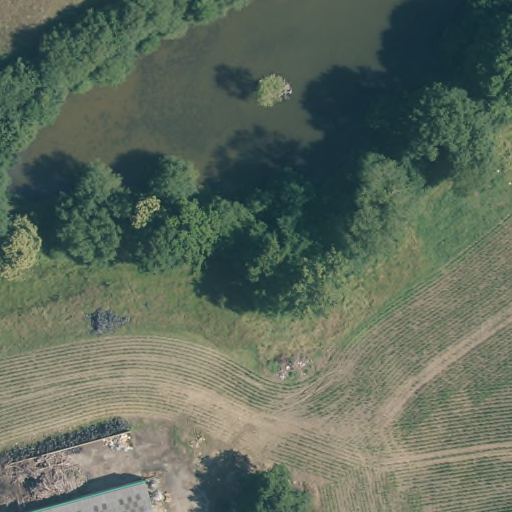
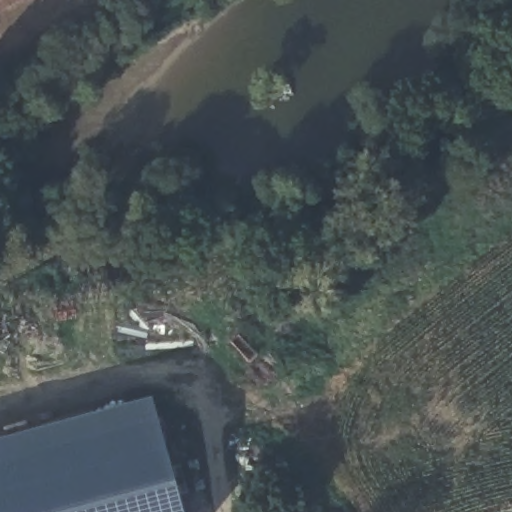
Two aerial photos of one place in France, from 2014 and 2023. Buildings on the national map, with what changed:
new [(146,478),(21,512),(0,512),(0,438),(151,398),(183,512),(155,512),(146,478)]
unchanged [(146,478),(155,512),(21,512),(146,478)]

